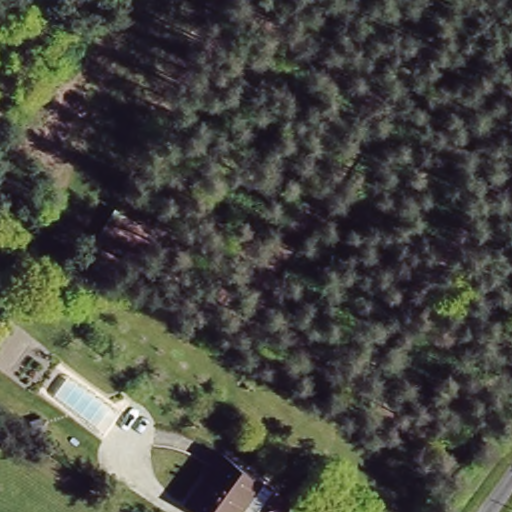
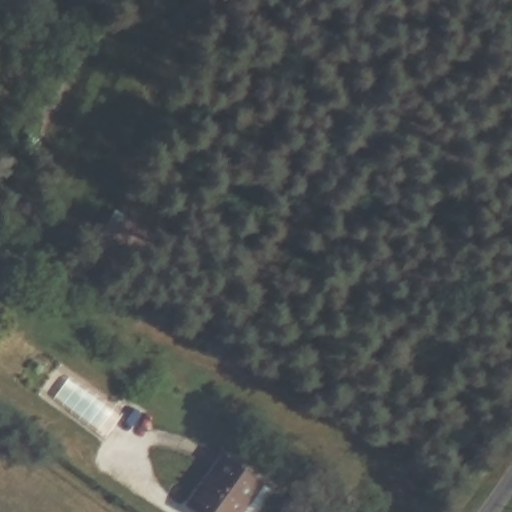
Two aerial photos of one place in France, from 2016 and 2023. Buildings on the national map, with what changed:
unchanged [(148,233),(126,269),(92,249),(114,210),(148,233)]
unchanged [(116,414),(103,429),(78,404),(91,390),(116,414)]
unchanged [(183,506),(219,449),(265,483),(245,512),(192,512),(183,506)]

